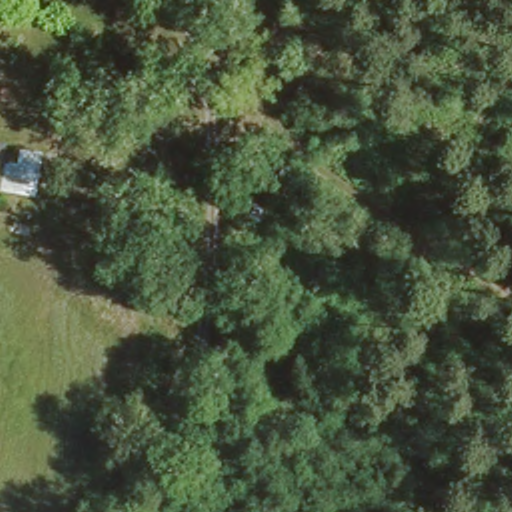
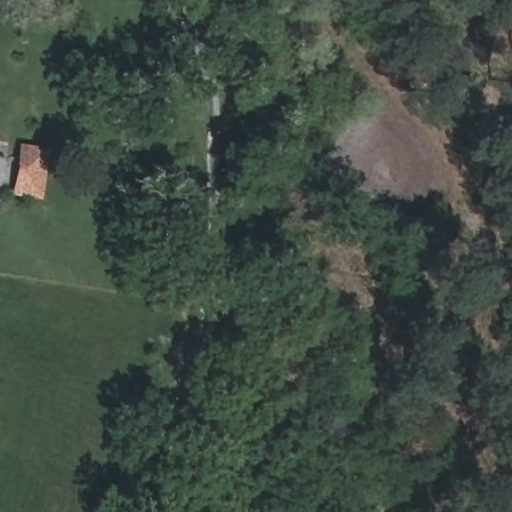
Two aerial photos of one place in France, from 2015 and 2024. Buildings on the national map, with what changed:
new [(40,200),(9,196),(17,144),(46,148),(40,200)]

